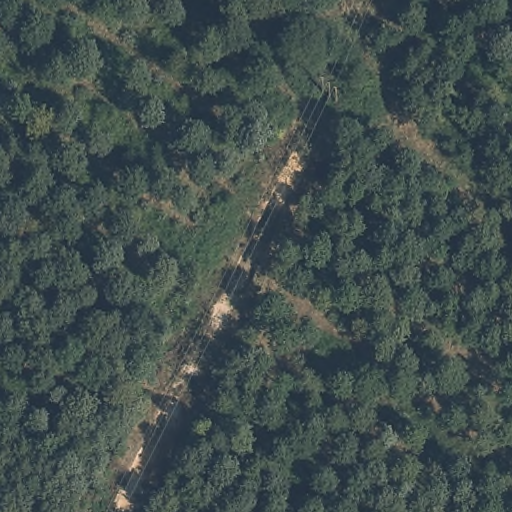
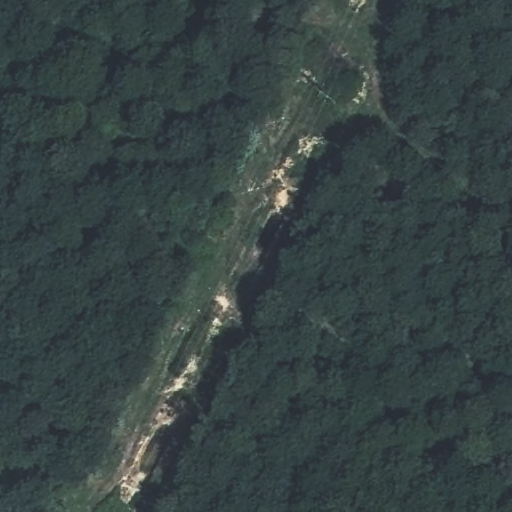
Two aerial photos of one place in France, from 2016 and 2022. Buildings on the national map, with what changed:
[]

